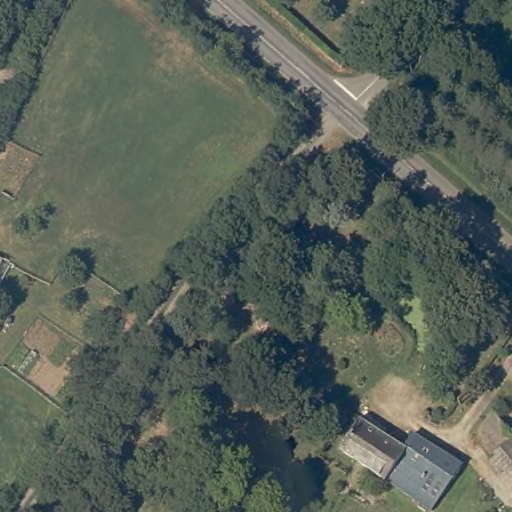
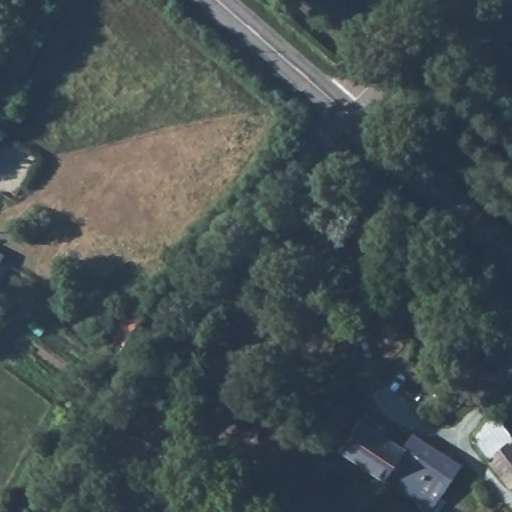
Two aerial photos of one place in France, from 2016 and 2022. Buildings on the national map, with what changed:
unchanged [(4,266),(0,274),(0,263),(4,266)]
unchanged [(118,341),(105,332),(123,306),(135,316),(118,341)]
unchanged [(499,417),(512,434),(512,487),(511,487),(471,436),(495,412),(499,417)]
unchanged [(429,510),(358,461),(337,447),(359,417),(402,447),(412,434),(429,446),(458,465),(460,465),(429,510)]
unchanged [(496,511),(498,512),(496,512),(496,511)]

